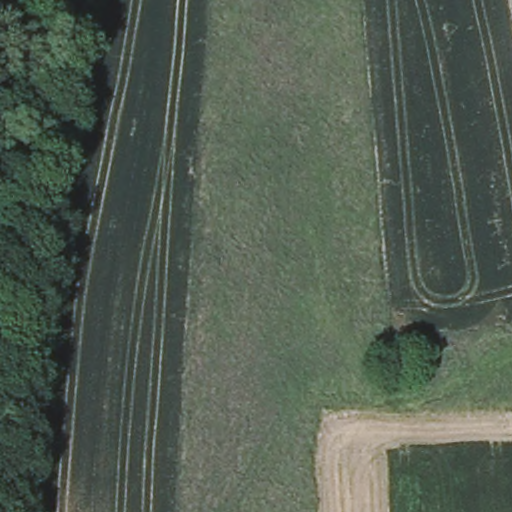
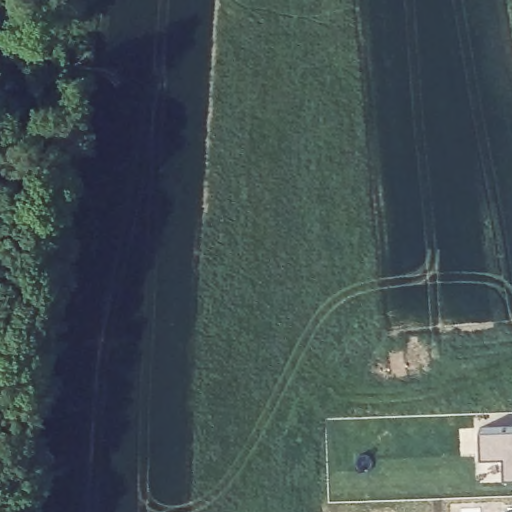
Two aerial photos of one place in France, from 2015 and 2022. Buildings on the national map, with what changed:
unchanged [(403,370),(387,372),(385,348),(398,345),(403,370)]
new [(504,476),(503,455),(480,455),(480,427),(512,427),(512,476),(504,476)]
new [(504,512),(503,511),(512,511),(512,512),(504,512)]

